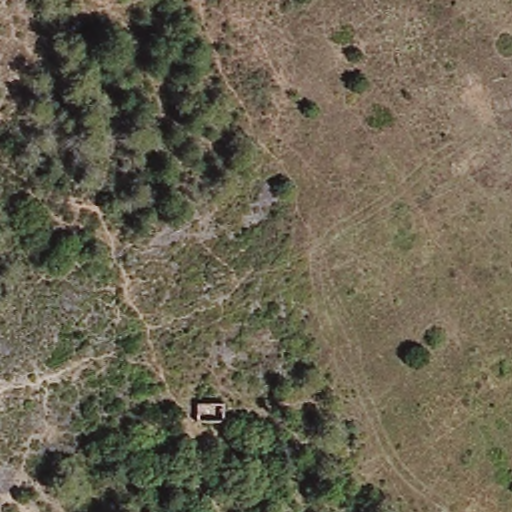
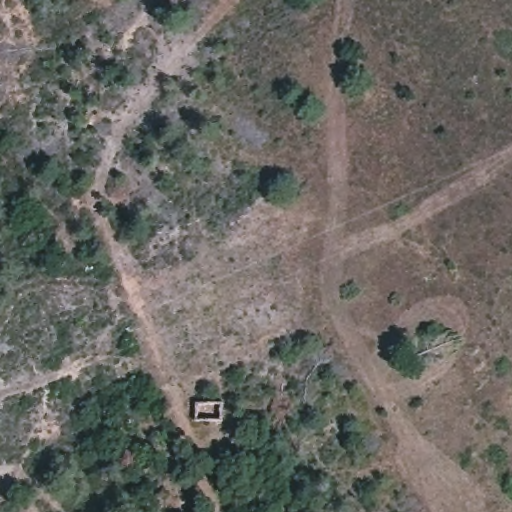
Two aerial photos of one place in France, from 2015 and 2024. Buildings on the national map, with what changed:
unchanged [(194,417),(194,398),(223,398),(223,419),(194,417)]

